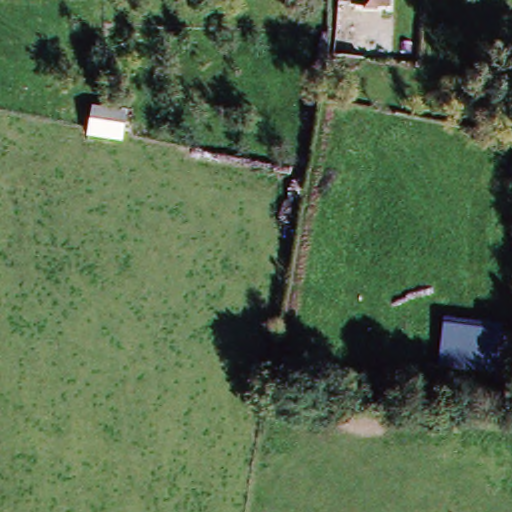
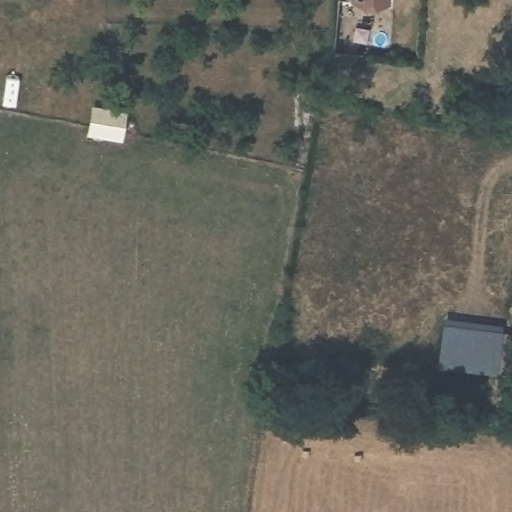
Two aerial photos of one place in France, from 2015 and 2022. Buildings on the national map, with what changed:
unchanged [(390,7),(350,5),(350,0),(391,0),(390,7)]
unchanged [(508,336),(502,381),(435,375),(444,328),(508,336)]

